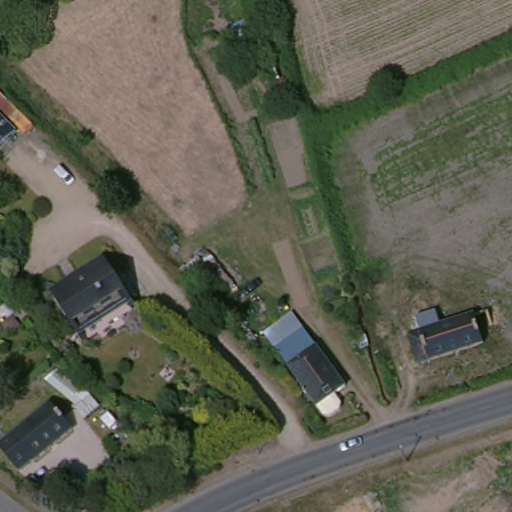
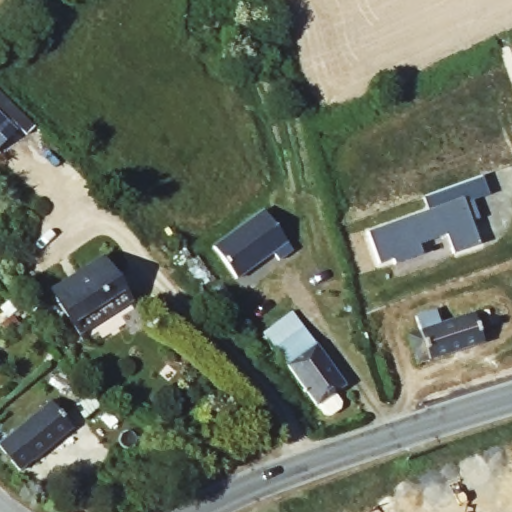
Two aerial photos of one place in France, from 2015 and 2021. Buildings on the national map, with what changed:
unchanged [(0,156),(0,89),(33,122),(0,156)]
new [(484,176),(491,195),(474,201),(481,219),(473,222),(465,198),(429,210),(425,196),(484,176)]
new [(429,210),(465,198),(473,222),(481,244),(454,254),(447,235),(420,244),(423,253),(395,263),(393,258),(379,263),(368,231),(429,210)]
unchanged [(249,199),(282,235),(269,248),(262,240),(229,271),(206,239),(249,199)]
unchanged [(126,287),(77,327),(51,298),(85,269),(83,266),(97,254),(126,287)]
unchanged [(458,320),(467,317),(495,307),(497,314),(490,316),(493,324),(479,329),(483,342),(422,364),(411,335),(417,333),(413,322),(431,315),(435,328),(458,320)]
unchanged [(379,393),(363,329),(381,322),(398,388),(379,393)]
unchanged [(317,397),(280,356),(268,343),(290,323),(302,336),(339,376),(317,397)]
unchanged [(57,392),(80,421),(20,470),(0,444),(0,439),(57,392)]

